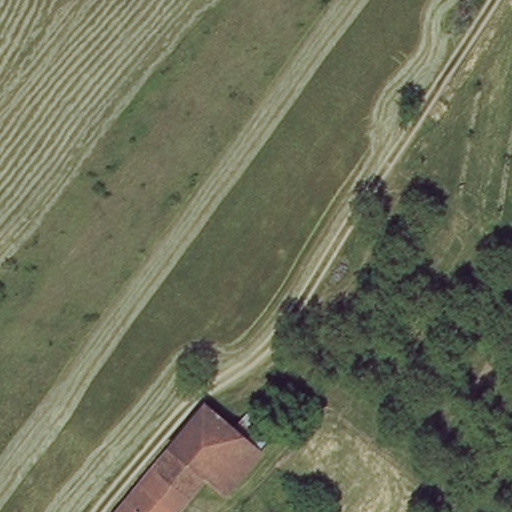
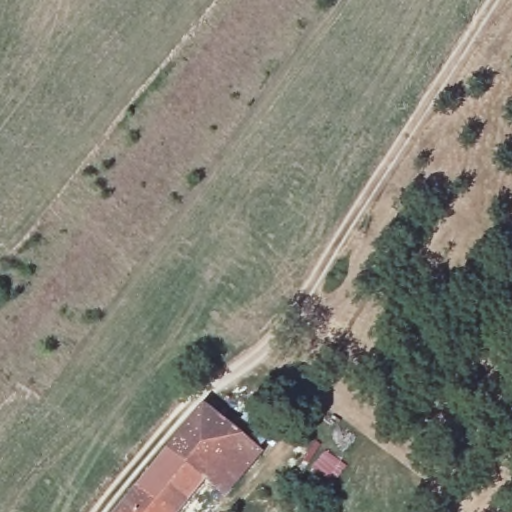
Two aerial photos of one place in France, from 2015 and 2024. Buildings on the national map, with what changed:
unchanged [(218,420),(185,457),(209,476),(178,512),(114,512),(200,406),(218,420)]
unchanged [(260,452),(228,491),(209,476),(185,457),(218,420),(260,452)]

